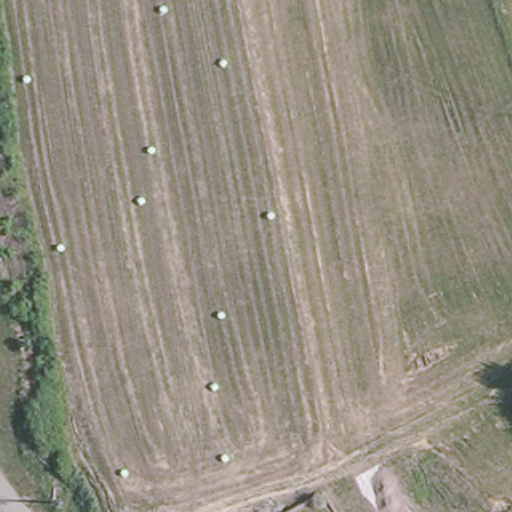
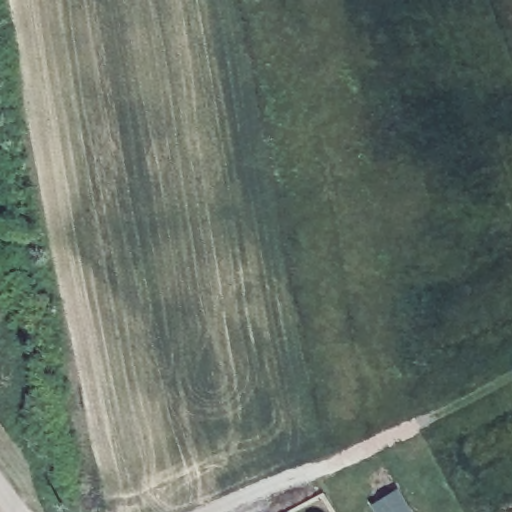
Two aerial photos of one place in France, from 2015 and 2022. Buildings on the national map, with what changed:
new [(413,512),(376,512),(371,505),(399,487),(413,512)]

